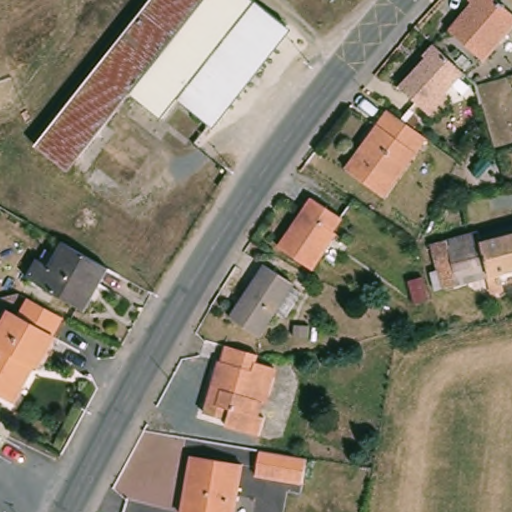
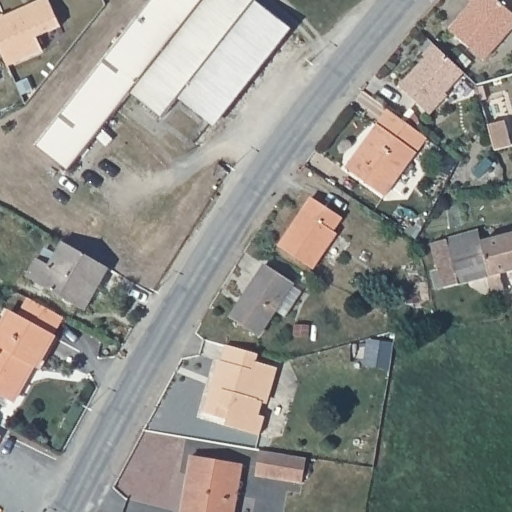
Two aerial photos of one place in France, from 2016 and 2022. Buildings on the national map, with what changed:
new [(4,18),(45,0),(49,0),(61,27),(36,38),(43,51),(8,67),(0,51),(0,18),(4,16),(4,18)]
unchanged [(210,126),(178,101),(162,120),(130,95),(69,174),(36,149),(48,135),(153,0),(251,0),(287,28),(210,126)]
unchanged [(448,32),(472,5),(467,1),(468,0),(494,0),(512,16),(512,29),(484,62),(448,32)]
unchanged [(432,115),(400,87),(426,58),(423,55),(435,44),(467,74),(432,115)]
unchanged [(352,165),(348,162),(369,134),(380,119),(418,147),(386,191),(352,165)]
unchanged [(333,234),(336,235),(312,271),(282,250),(279,249),(302,215),(312,200),(343,220),(333,234)]
unchanged [(477,235),(480,245),(512,237),(512,273),(443,291),(431,247),(477,235)]
unchanged [(79,310),(26,279),(36,261),(49,268),(63,245),(109,271),(96,294),(85,313),(79,310)]
unchanged [(288,311),(277,305),(260,330),(234,313),(268,260),(295,277),(294,280),(304,286),(288,311)]
unchanged [(9,400),(0,395),(0,319),(6,310),(14,314),(24,296),(59,316),(49,333),(31,365),(29,363),(9,400)]
unchanged [(312,318),(311,332),(296,330),(297,317),(312,318)]
unchanged [(204,416),(212,388),(214,388),(221,363),(226,347),(259,357),(257,365),(275,370),(272,379),(275,380),(270,397),(267,397),(264,406),(258,405),(254,417),(265,420),(260,438),(226,428),(228,422),(220,420),(204,416)]
unchanged [(307,460),(302,485),(256,478),(260,452),(307,460)]
unchanged [(242,466),(234,512),(183,512),(192,458),(242,466)]

